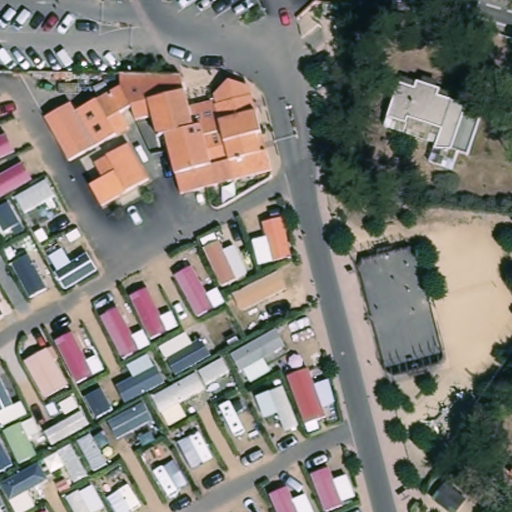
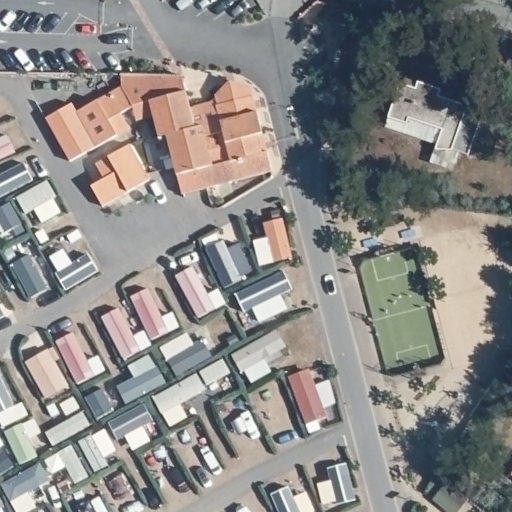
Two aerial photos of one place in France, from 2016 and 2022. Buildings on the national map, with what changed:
unchanged [(272,171),(182,192),(169,136),(158,138),(152,117),(139,120),(135,104),(123,111),(129,123),(132,127),(119,135),(73,160),(49,117),(74,103),(78,109),(125,84),(125,72),(180,73),(189,107),(217,101),(215,96),(225,87),(237,84),(251,89),(253,96),(263,135),(267,152),(272,171)]
unchanged [(409,95),(410,89),(436,97),(432,102),(461,114),(459,120),(474,125),(462,163),(452,160),(447,176),(423,169),(429,150),(379,132),(393,89),(409,95)]
unchanged [(151,180),(104,207),(91,186),(105,178),(99,168),(96,163),(110,156),(131,144),(151,180)]
unchanged [(468,499),(457,512),(453,512),(437,499),(449,484),(468,499)]

